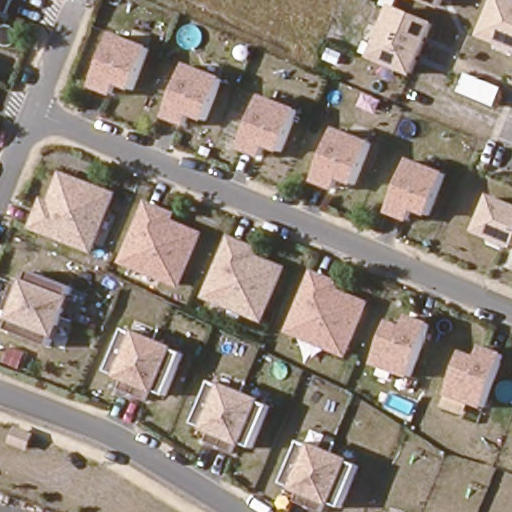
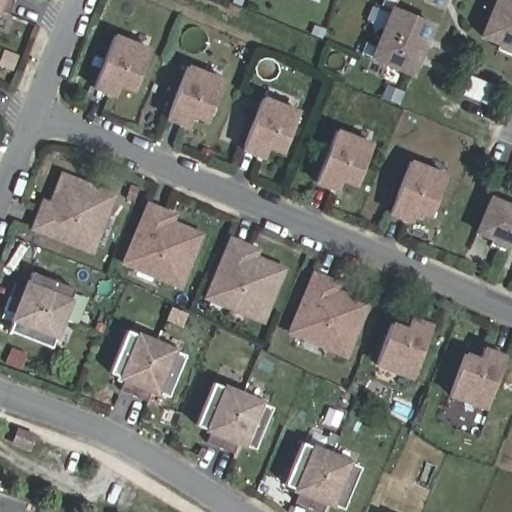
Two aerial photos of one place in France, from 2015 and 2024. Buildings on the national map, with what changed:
unchanged [(11,13),(0,8),(0,0),(17,0),(11,13)]
unchanged [(442,11),(415,0),(447,0),(442,11)]
unchanged [(493,0),(512,0),(512,53),(477,39),(493,0)]
unchanged [(436,25),(413,79),(368,60),(390,6),(436,25)]
unchanged [(150,49),(134,92),(121,87),(116,99),(92,90),(115,35),(150,49)]
unchanged [(224,79),(207,123),(194,117),(188,130),(165,120),(187,64),(224,79)]
unchanged [(503,88),(496,109),(458,93),(466,72),(503,88)]
unchanged [(299,110),(282,155),(268,150),(263,160),(242,151),(263,96),(299,110)]
unchanged [(372,143),(357,187),(342,181),(338,193),(316,185),(335,129),(372,143)]
unchanged [(447,174),(430,218),(416,213),(412,224),(388,215),(408,159),(447,174)]
unchanged [(46,214),(50,204),(57,206),(68,176),(120,196),(99,252),(40,230),(46,214)]
unchanged [(490,195),(512,205),(512,250),(473,235),(490,195)]
unchanged [(178,213),(175,221),(206,234),(182,290),(120,265),(147,200),(178,213)]
unchanged [(234,241),(250,247),(260,251),(257,258),(262,260),(287,270),(268,321),(242,312),(212,300),(234,241)]
unchanged [(344,282),(341,290),(372,301),(347,360),(286,334),(312,270),(344,282)]
unchanged [(17,285),(28,290),(34,274),(77,290),(66,320),(12,299),(17,285)]
unchanged [(66,320),(65,320),(65,321),(55,349),(12,333),(17,317),(7,312),(11,302),(12,299),(66,320)]
unchanged [(389,322),(406,327),(410,316),(432,324),(413,381),(375,366),(389,322)]
unchanged [(127,340),(130,333),(159,345),(157,350),(137,398),(123,392),(127,381),(112,375),(127,340)]
unchanged [(157,350),(159,345),(187,357),(187,360),(170,400),(155,392),(150,403),(137,398),(157,350)]
unchanged [(462,352),(477,358),(483,346),(505,355),(485,411),(447,397),(462,352)]
unchanged [(216,380),(245,392),(223,445),(210,440),(214,429),(199,422),(216,380)]
unchanged [(245,392),(274,405),(257,446),(241,440),(237,451),(223,445),(245,392)]
unchanged [(42,440),(38,450),(20,442),(24,433),(25,432),(42,440)]
unchanged [(333,457),(327,473),(313,511),(312,510),(298,505),(302,493),(287,487),(303,445),(333,457)]
unchanged [(333,457),(334,457),(362,470),(345,511),(329,505),(326,512),(316,512),(313,511),(327,473),(333,457)]

